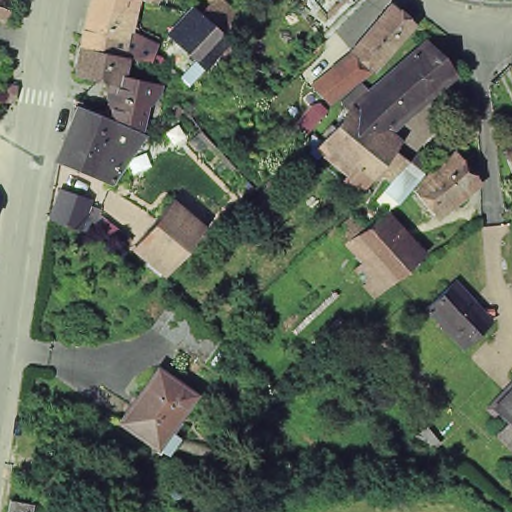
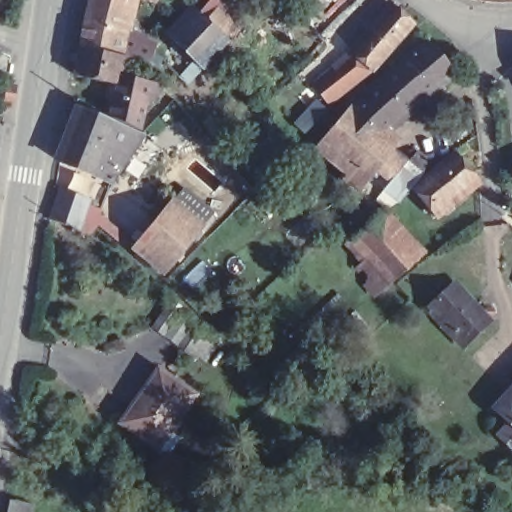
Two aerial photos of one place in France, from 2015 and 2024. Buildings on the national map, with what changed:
unchanged [(161,11),(148,6),(133,58),(149,62),(188,3),(191,0),(241,0),(256,11),(225,66),(216,54),(180,95),(163,89),(164,103),(151,104),(144,145),(116,190),(52,167),(74,106),(107,115),(108,95),(74,83),(90,0),(169,0),(161,11)]
unchanged [(324,43),(290,9),(288,6),(293,0),(365,0),(324,43)]
unchanged [(346,64),(356,54),(354,52),(361,45),(372,34),(397,7),(418,26),(393,52),(374,72),(334,106),(316,87),(343,61),(346,64)]
unchanged [(324,142),(330,136),(326,131),(333,124),(337,129),(352,114),(345,106),(364,87),(371,96),(429,43),(458,74),(384,142),(394,150),(371,181),(359,172),(324,142)]
unchanged [(440,218),(417,189),(459,155),(483,183),(440,218)]
unchanged [(507,157),(512,155),(512,169),(507,157)]
unchanged [(427,174),(401,204),(386,192),(411,162),(427,174)]
unchanged [(76,232),(61,226),(48,221),(56,193),(73,197),(85,204),(76,232)]
unchanged [(133,252),(168,210),(199,236),(164,277),(133,252)]
unchanged [(387,287),(366,262),(349,243),(376,218),(394,237),(406,251),(414,245),(423,255),(415,262),(394,280),(387,287)]
unchanged [(462,282),(500,320),(474,344),(438,306),(462,282)]
unchanged [(153,328),(171,302),(183,311),(188,311),(196,318),(178,344),(168,337),(153,328)]
unchanged [(115,421),(151,368),(190,393),(185,400),(163,430),(173,437),(161,453),(151,447),(115,421)]
unchanged [(498,414),(512,400),(512,430),(498,414)]
unchanged [(512,431),(512,454),(500,441),(504,437),(512,431)]
unchanged [(31,506),(30,512),(7,512),(9,502),(31,506)]

